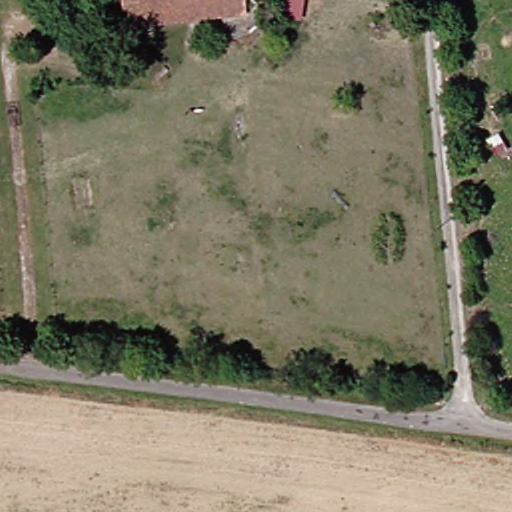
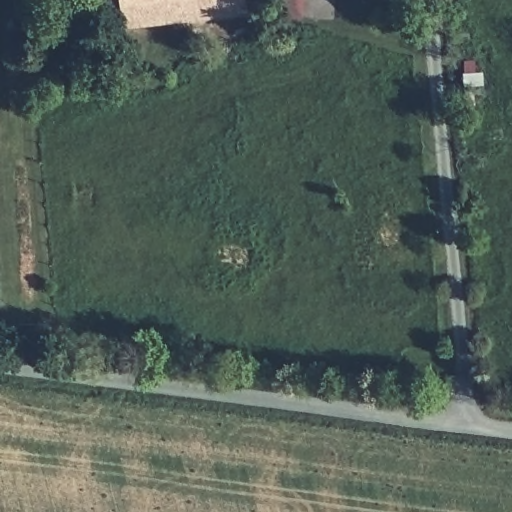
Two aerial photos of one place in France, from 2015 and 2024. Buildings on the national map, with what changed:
unchanged [(125,0),(247,0),(249,17),(127,25),(103,27),(101,2),(125,0)]

